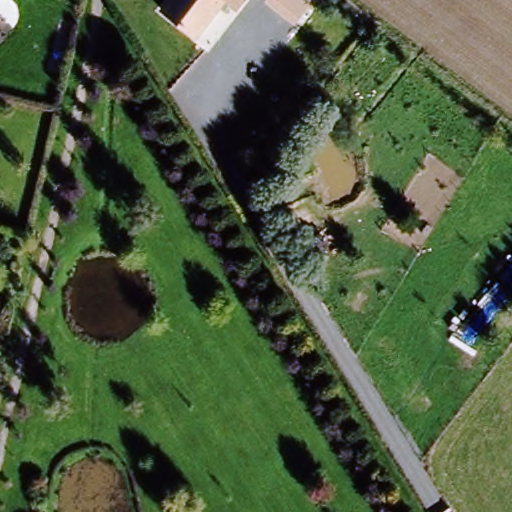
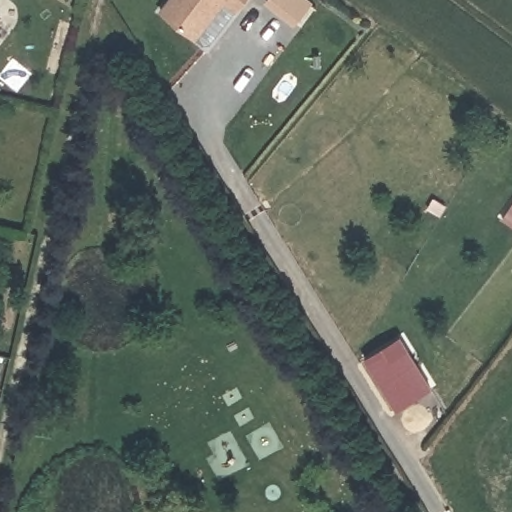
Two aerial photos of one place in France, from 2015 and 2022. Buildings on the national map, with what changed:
unchanged [(172,0),(246,0),(235,15),(225,8),(200,42),(160,14),(172,0)]
new [(400,335),(432,387),(397,407),(366,355),(400,335)]

